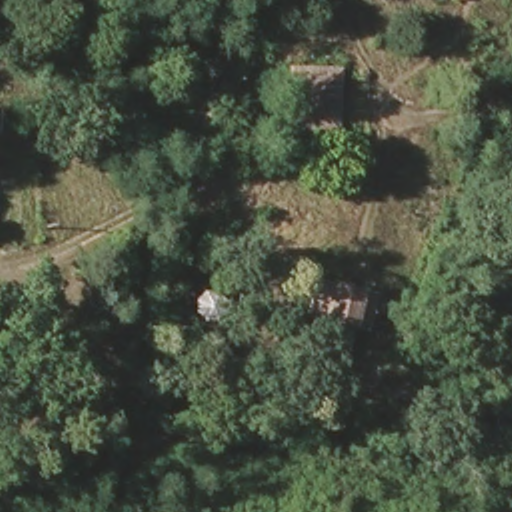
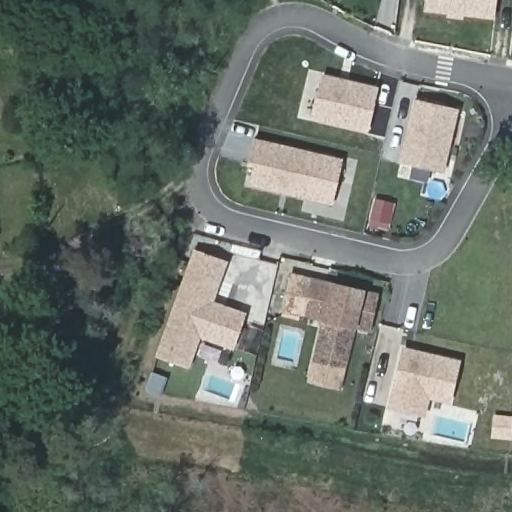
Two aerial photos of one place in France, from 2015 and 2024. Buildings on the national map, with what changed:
new [(497,19),(428,11),(429,0),(499,0),(497,19)]
demolished [(342,73),(343,133),(338,134),(338,146),(318,145),(318,133),(294,131),(295,72),(342,73)]
new [(369,135),(314,123),(324,81),(379,94),(369,135)]
new [(459,114),(443,178),(402,168),(408,145),(412,146),(413,139),(409,138),(417,104),(459,114)]
new [(255,169),(249,167),(255,144),(345,166),(335,209),(251,188),(255,169)]
demolished [(279,218),(281,242),(265,243),(264,219),(279,218)]
new [(198,251),(228,262),(212,307),(225,312),(227,307),(247,314),(235,348),(202,336),(191,367),(159,357),(198,251)]
new [(311,382),(325,321),(311,317),(287,312),(295,278),(318,283),(363,294),(377,297),(369,331),(354,328),(343,390),(311,382)]
demolished [(317,364),(326,325),(312,321),(320,287),(364,298),(378,301),(370,335),(356,332),(346,371),(317,364)]
new [(462,360),(453,399),(431,393),(427,413),(395,405),(409,347),(462,360)]

